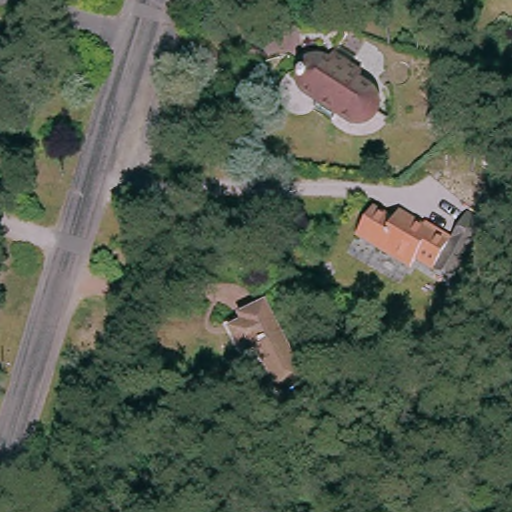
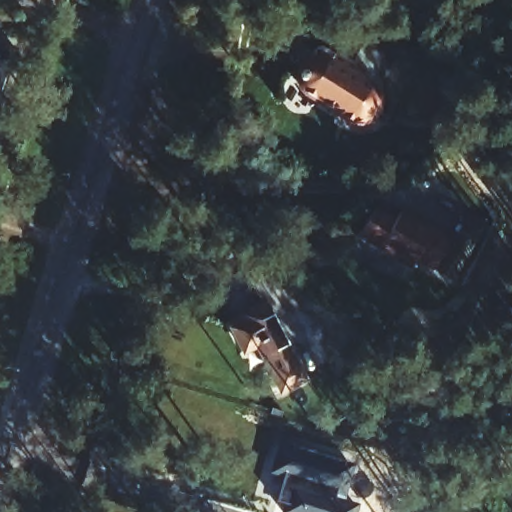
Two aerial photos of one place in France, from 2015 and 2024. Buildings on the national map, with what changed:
unchanged [(310,91),(302,87),(298,80),(298,74),(300,68),(304,61),(310,58),(319,58),(325,42),(347,49),(345,59),(357,63),(352,76),(357,75),(364,76),(370,79),(374,85),(375,92),(373,100),(369,106),(362,109),(355,109),(348,106),(343,101),(341,112),(315,105),(317,93),(310,91)]
unchanged [(10,46),(0,78),(0,43),(10,46)]
unchanged [(455,119),(452,123),(447,127),(438,127),(433,124),(430,119),(430,113),(432,106),(437,103),(445,101),(450,104),(455,109),(455,115),(455,119)]
unchanged [(373,204),(392,221),(400,210),(423,226),(428,221),(452,236),(435,273),(417,263),(410,271),(358,237),(373,204)]
unchanged [(266,297),(282,328),(286,325),(305,359),(302,362),(307,374),(285,387),(261,340),(248,348),(230,315),(266,297)]
new [(345,499),(360,504),(356,512),(281,512),(283,506),(275,504),(284,477),(270,472),(279,441),(353,465),(345,499)]

